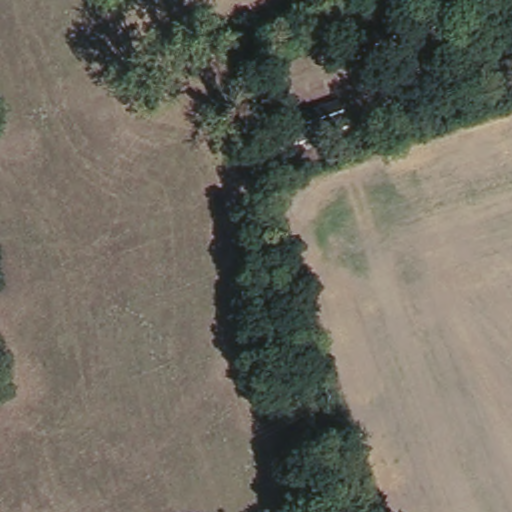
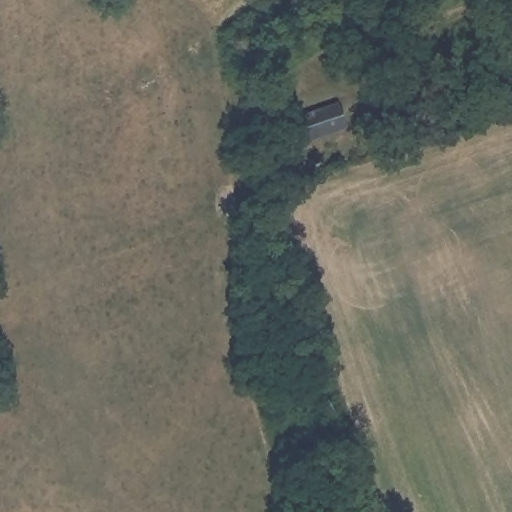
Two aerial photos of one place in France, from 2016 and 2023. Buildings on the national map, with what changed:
unchanged [(337,98),(346,121),(296,140),(286,115),(337,98)]

